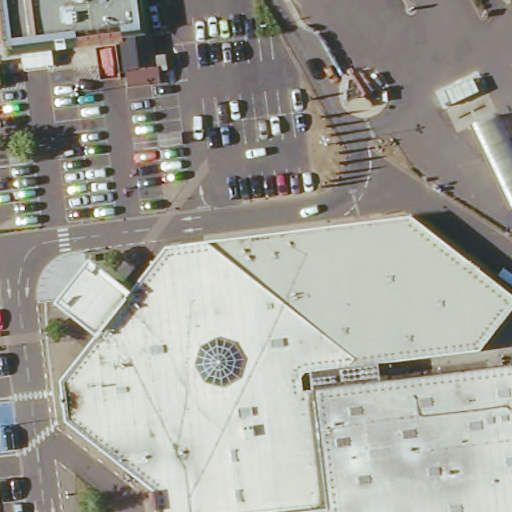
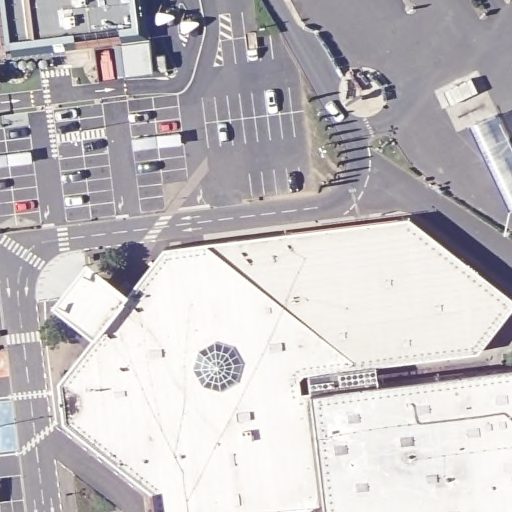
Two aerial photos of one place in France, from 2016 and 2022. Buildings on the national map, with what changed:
unchanged [(8,0),(151,0),(154,18),(136,22),(136,25),(15,43),(8,0)]
unchanged [(118,51),(137,48),(137,51),(151,49),(152,62),(153,71),(139,73),(122,75),(118,51)]
unchanged [(136,90),(133,76),(154,72),(155,71),(153,62),(162,60),(165,75),(156,77),(158,86),(136,90)]
unchanged [(470,129),(496,116),(512,149),(512,212),(511,213),(470,129)]
unchanged [(64,425),(58,382),(93,336),(52,305),(83,261),(129,294),(166,246),(205,242),(254,235),(269,233),(297,231),(407,218),(442,247),(435,258),(505,313),(484,343),(468,332),(450,356),(406,361),(402,356),(374,335),(349,359),(347,367),(376,364),(382,382),(512,366),(512,512),(153,512),(151,493),(64,425)]

